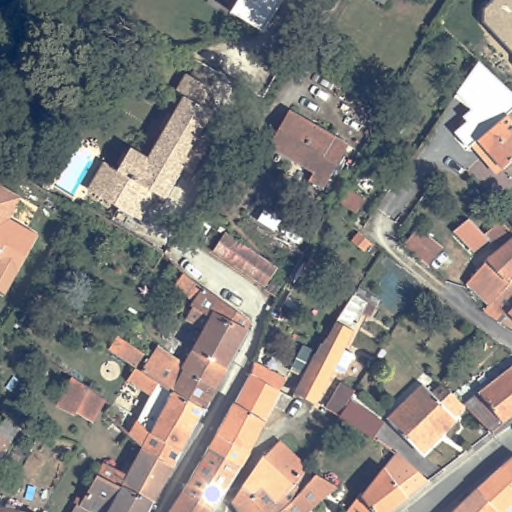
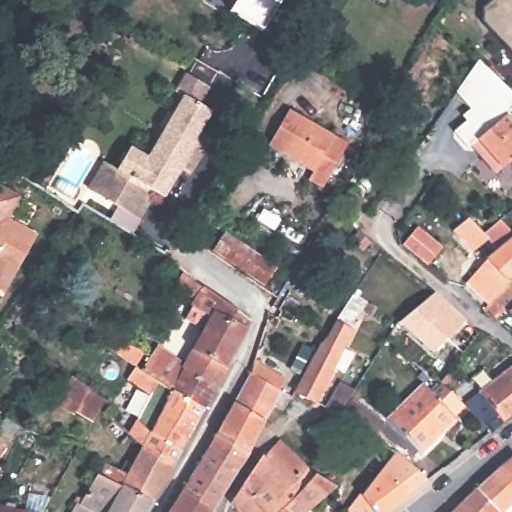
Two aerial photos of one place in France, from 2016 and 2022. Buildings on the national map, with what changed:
unchanged [(263,29),(231,10),(238,0),(281,0),(263,29)]
unchanged [(482,20),(482,6),(489,0),(512,0),(512,53),(482,20)]
unchanged [(495,177),(455,132),(465,122),(461,117),(470,108),(457,92),(480,59),(512,92),(512,111),(508,114),(490,96),(471,111),(491,135),(480,142),(503,171),(495,177)]
unchanged [(181,165),(162,196),(154,191),(139,217),(106,199),(109,195),(90,184),(104,160),(116,168),(129,146),(147,157),(182,95),(174,91),(185,72),(207,86),(197,104),(210,111),(197,131),(208,138),(194,162),(190,170),(181,165)]
unchanged [(503,171),(480,142),(491,135),(471,111),(490,96),(508,114),(512,118),(512,164),(503,171)]
unchanged [(313,175),(317,166),(272,141),(293,106),(340,132),(353,139),(348,148),(327,182),(313,175)]
unchanged [(0,183),(15,192),(22,196),(10,215),(10,217),(38,234),(15,275),(7,289),(6,292),(0,289),(0,183)]
unchanged [(507,213),(512,209),(512,219),(507,213)]
unchanged [(496,320),(496,319),(484,309),(490,302),(466,282),(488,258),(500,249),(483,233),(485,232),(500,219),(512,233),(512,316),(505,309),(496,320)]
unchanged [(403,242),(417,226),(440,246),(426,262),(403,242)]
unchanged [(230,233),(276,263),(263,281),(219,251),(230,233)]
unchanged [(159,258),(164,252),(169,257),(165,262),(159,258)]
unchanged [(180,284),(189,272),(194,276),(255,321),(208,408),(155,376),(146,369),(160,347),(190,366),(199,348),(194,343),(191,338),(205,316),(214,322),(219,312),(180,284)]
unchanged [(348,373),(338,368),(321,402),(301,392),(321,353),(323,354),(329,342),(330,339),(332,338),(338,326),(349,309),(359,293),(380,306),(375,315),(367,310),(348,349),(358,355),(348,373)]
new [(433,354),(400,322),(434,293),(465,320),(433,354)]
demolished [(422,302),(435,293),(455,310),(444,321),(422,302)]
unchanged [(115,346),(123,333),(150,351),(142,364),(115,346)]
unchanged [(217,437),(226,422),(260,362),(291,382),(276,409),(267,428),(258,442),(250,456),(237,480),(225,500),(191,479),(217,437)]
unchanged [(149,448),(132,433),(124,443),(109,430),(119,420),(130,431),(142,418),(156,395),(149,389),(133,378),(141,366),(146,369),(155,376),(208,408),(185,450),(177,465),(155,504),(102,476),(110,464),(132,475),(149,448)]
unchanged [(483,395),(482,393),(512,369),(512,420),(496,432),(470,408),(468,405),(483,395)]
unchanged [(93,420),(78,413),(74,410),(70,415),(55,404),(62,393),(71,376),(105,400),(93,420)]
unchanged [(332,408),(346,383),(360,390),(345,416),(332,408)]
unchanged [(392,418),(427,385),(437,395),(448,386),(468,405),(470,408),(460,418),(463,421),(427,454),(392,418)]
unchanged [(11,433),(10,437),(15,440),(0,465),(0,431),(2,427),(11,433)]
unchanged [(244,512),(236,503),(248,484),(268,455),(269,457),(285,440),(312,468),(298,484),(305,491),(281,512),(244,512)]
unchanged [(370,489),(372,491),(405,448),(406,446),(438,476),(393,512),(385,512),(381,507),(375,512),(368,512),(361,501),(370,489)]
unchanged [(512,461),(512,512),(507,512),(481,487),(512,461)]
unchanged [(1,481),(0,485),(0,472),(5,474),(1,481)]
unchanged [(320,476),(321,474),(339,485),(308,512),(281,512),(305,491),(320,476)]
unchanged [(80,502),(82,496),(89,500),(102,476),(155,504),(151,512),(95,512),(78,512),(82,504),(80,502)]
unchanged [(191,479),(225,500),(217,512),(190,512),(176,503),(191,479)]
unchanged [(507,512),(456,512),(481,487),(507,512)]
unchanged [(190,512),(172,512),(176,503),(190,512)]
unchanged [(0,512),(0,508),(21,512),(0,512)]

